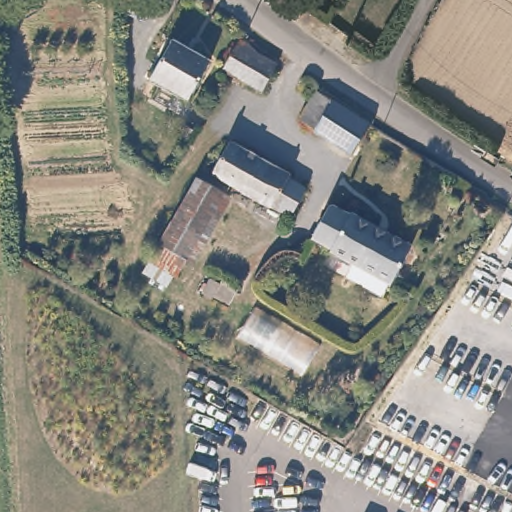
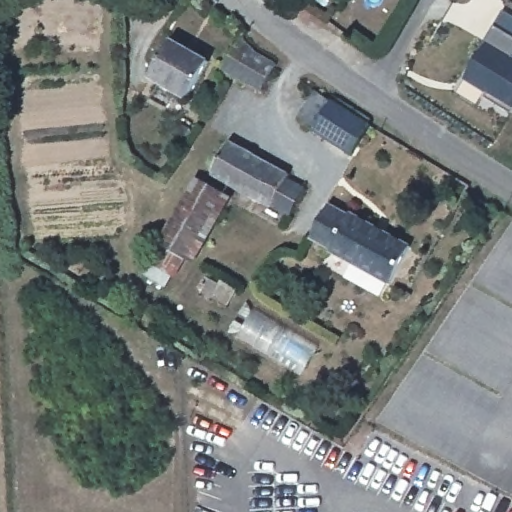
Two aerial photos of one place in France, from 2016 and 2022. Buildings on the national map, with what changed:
new [(512,36),(512,57),(512,58),(512,109),(465,80),(495,26),(512,36)]
unchanged [(204,59),(183,96),(145,75),(167,38),(204,59)]
unchanged [(263,96),(255,93),(236,82),(220,71),(239,39),(256,52),(272,63),(279,68),(263,96)]
unchanged [(374,130),(357,159),(303,126),(319,97),(374,130)]
unchanged [(289,173),(287,177),(307,190),(292,217),(213,172),(230,141),(289,173)]
unchanged [(221,197),(173,278),(167,277),(161,287),(136,272),(187,188),(192,181),(221,197)]
unchanged [(349,218),(352,213),(413,247),(393,285),(389,285),(382,296),(346,277),(352,266),(329,252),(329,247),(311,238),(330,207),(349,218)]
unchanged [(317,347),(306,373),(240,335),(253,311),(317,347)]

